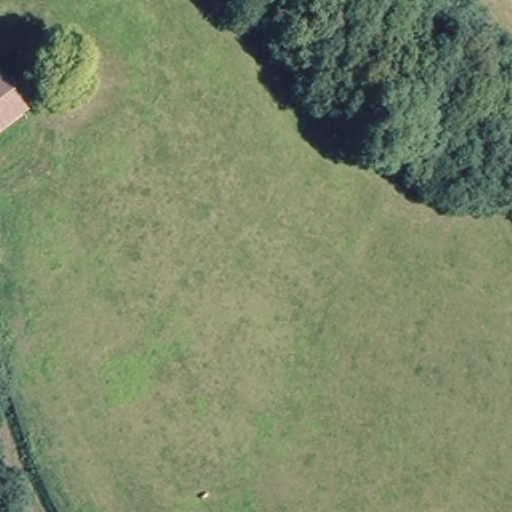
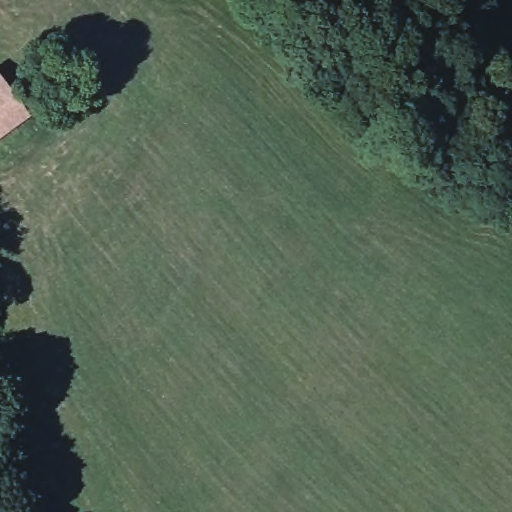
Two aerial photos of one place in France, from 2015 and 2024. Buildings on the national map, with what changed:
unchanged [(0,135),(0,70),(6,65),(37,110),(0,135)]

